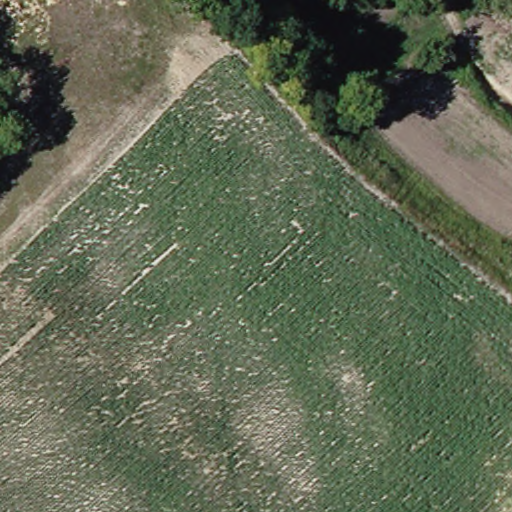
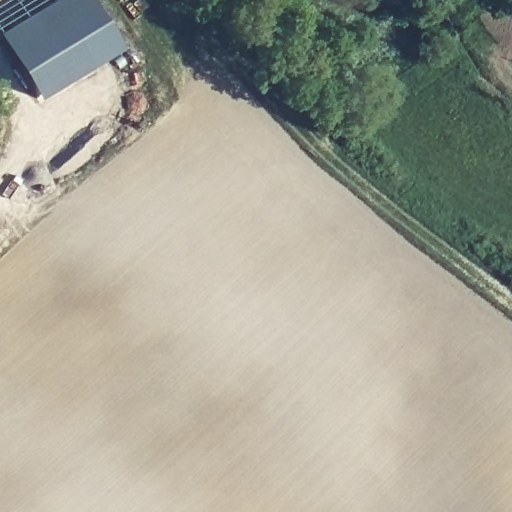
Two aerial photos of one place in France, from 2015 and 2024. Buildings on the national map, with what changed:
new [(40,104),(0,39),(0,38),(62,0),(86,0),(120,56),(40,104)]

